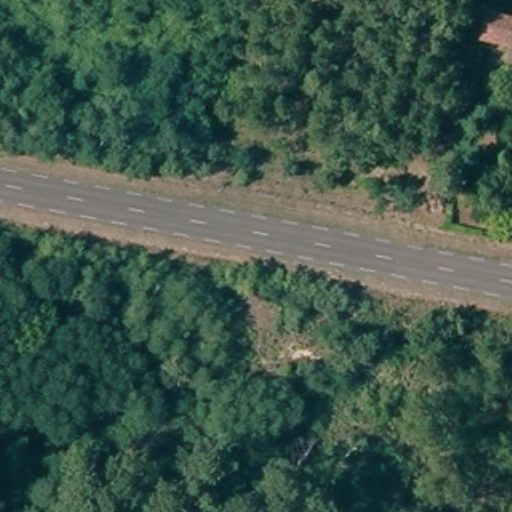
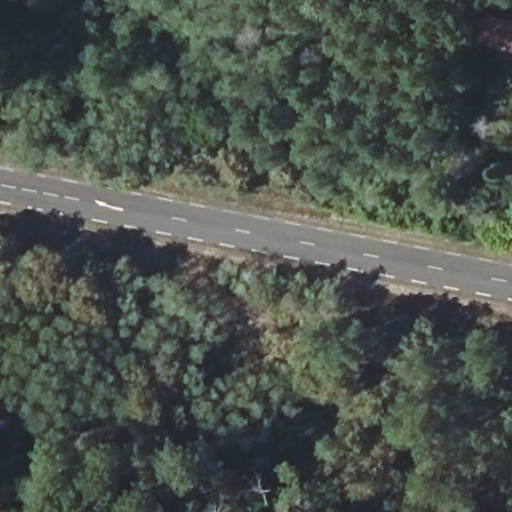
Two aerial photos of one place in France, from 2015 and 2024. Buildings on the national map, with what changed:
unchanged [(512,19),(512,51),(485,44),(491,14),(512,19)]

